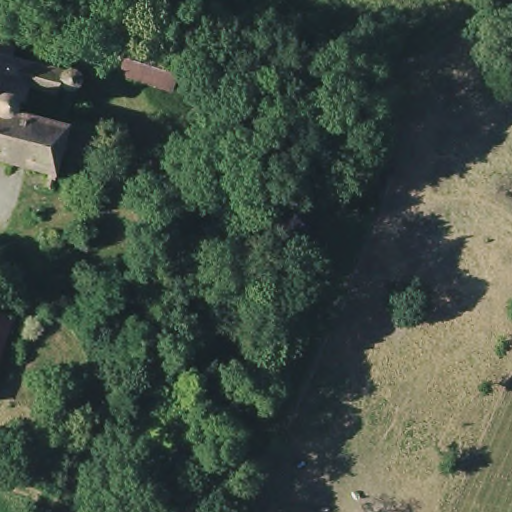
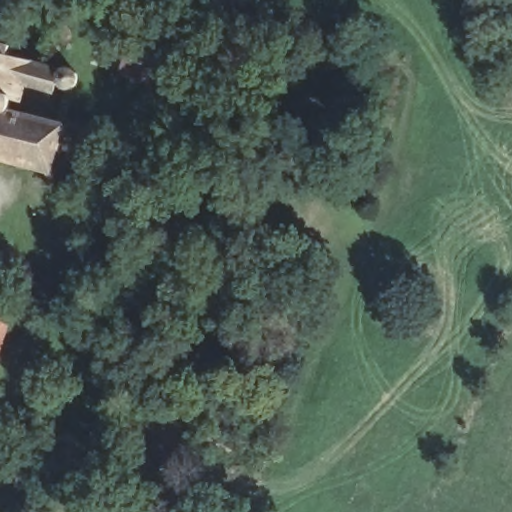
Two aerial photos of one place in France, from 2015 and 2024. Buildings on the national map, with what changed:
unchanged [(176,80),(171,94),(145,84),(98,66),(109,35),(157,51),(182,61),(176,80)]
unchanged [(83,166),(53,158),(48,177),(0,164),(0,47),(7,49),(5,60),(72,76),(60,128),(90,136),(83,166)]
unchanged [(142,196),(149,175),(154,161),(192,175),(188,189),(181,210),(142,196)]
unchanged [(9,316),(0,344),(0,313),(9,316)]

